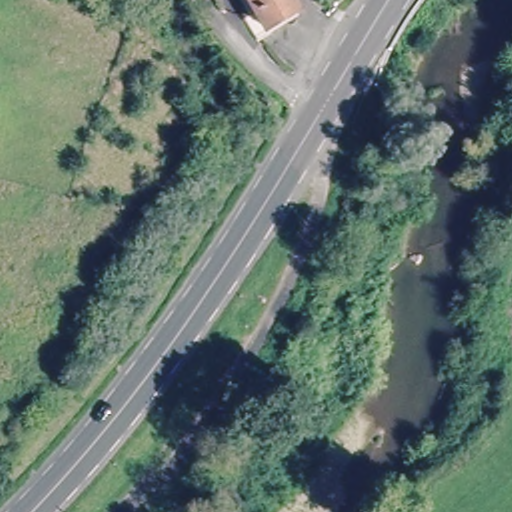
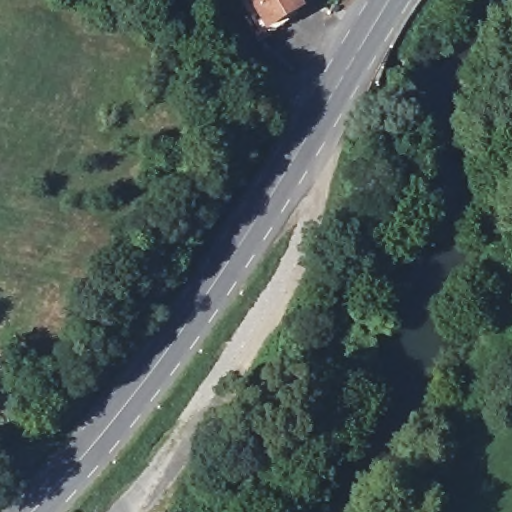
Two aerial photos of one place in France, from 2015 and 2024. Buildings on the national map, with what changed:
unchanged [(268,28),(253,0),(290,0),(296,10),(268,28)]

